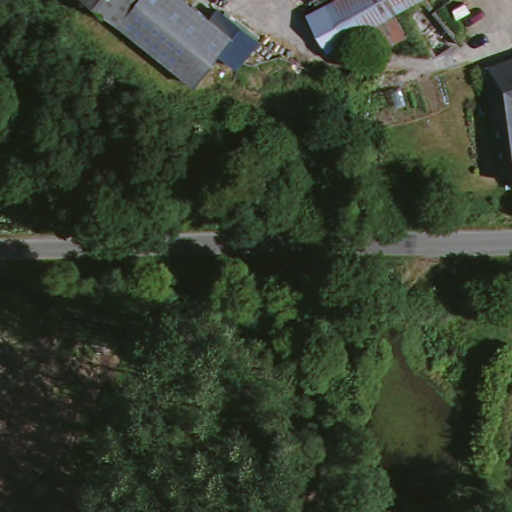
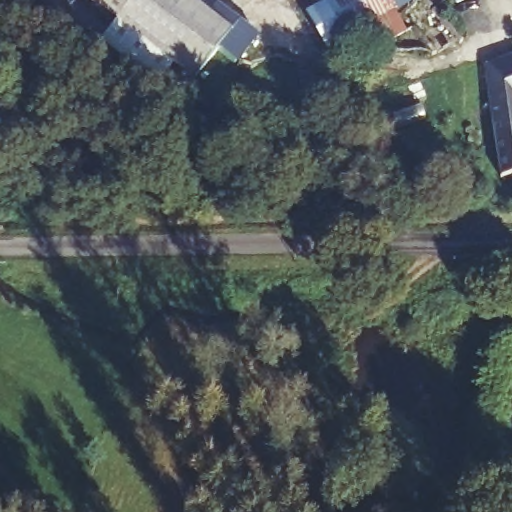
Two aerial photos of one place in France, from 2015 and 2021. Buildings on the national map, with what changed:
unchanged [(133,22),(131,27),(91,0),(148,0),(133,22)]
unchanged [(133,22),(148,0),(192,0),(235,31),(199,81),(131,27),(133,22)]
unchanged [(392,22),(406,41),(378,62),(364,41),(329,65),(306,33),(354,0),(423,0),(392,22)]
unchanged [(500,72),(512,67),(512,187),(503,189),(489,110),(484,79),(500,72)]

